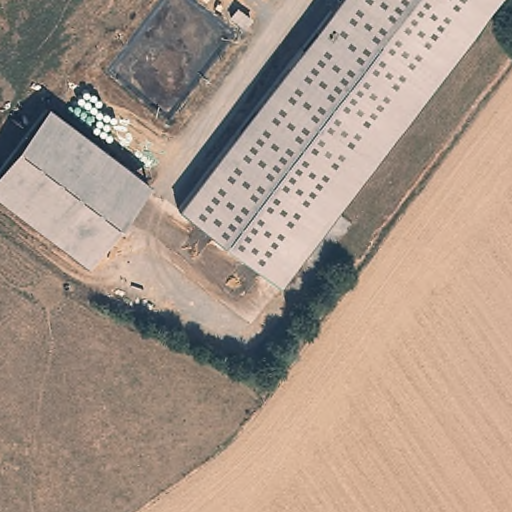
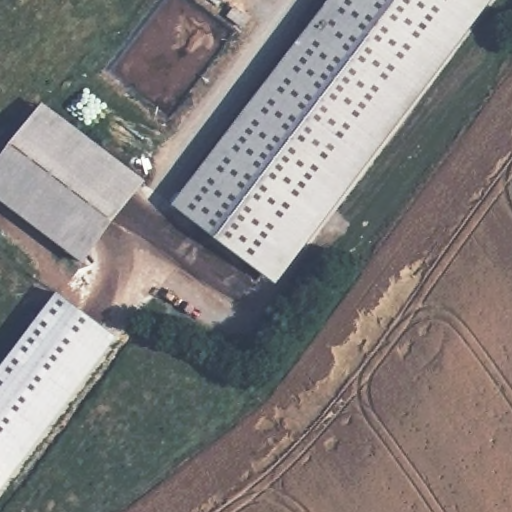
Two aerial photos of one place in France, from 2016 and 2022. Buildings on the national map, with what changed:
unchanged [(501,0),(280,282),(180,202),(334,0),(501,0)]
unchanged [(0,198),(0,176),(37,107),(148,166),(101,252),(0,198)]
new [(119,339),(0,495),(0,372),(60,293),(119,339)]

